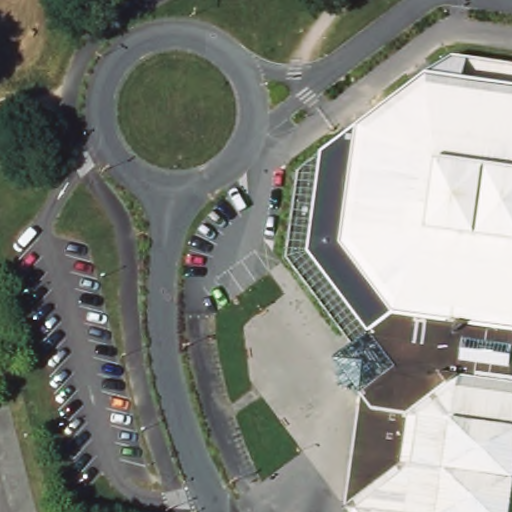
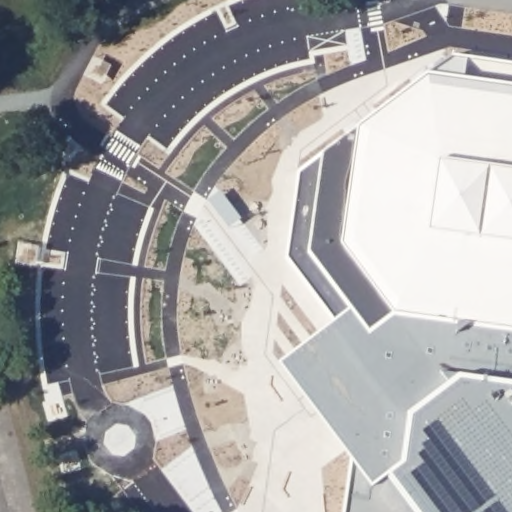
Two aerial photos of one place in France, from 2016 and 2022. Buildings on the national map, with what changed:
unchanged [(345,506),(362,393),(335,360),(353,346),(286,257),(298,170),(452,56),(512,63),(512,512),(350,512),(345,506)]

